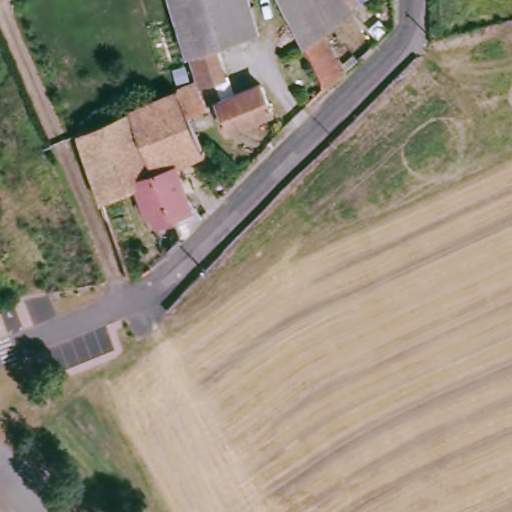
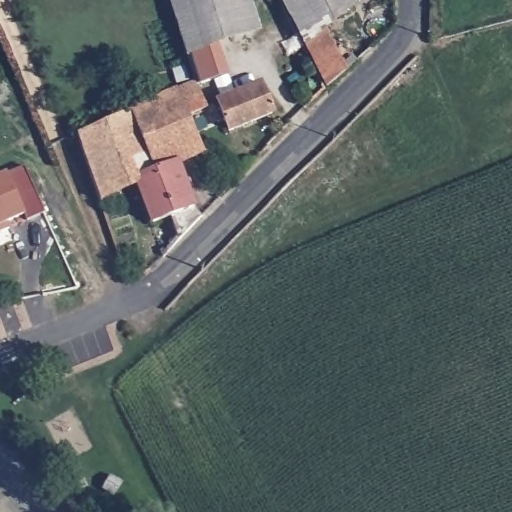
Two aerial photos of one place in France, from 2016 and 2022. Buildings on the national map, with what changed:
unchanged [(194,52),(179,0),(254,0),(262,35),(215,47),(226,80),(204,88),(194,52)]
unchanged [(281,0),(375,0),(356,11),(326,34),(305,51),(281,0)]
unchanged [(326,97),(305,51),(326,34),(349,78),(326,97)]
unchanged [(264,84),(275,112),(232,129),(221,99),(264,84)]
unchanged [(201,154),(183,161),(203,214),(180,237),(173,216),(136,113),(183,96),(201,154)]
unchanged [(153,223),(138,185),(101,199),(81,133),(136,113),(173,216),(153,223)]
new [(21,212),(3,219),(6,226),(0,228),(0,173),(24,164),(43,212),(24,219),(21,212)]

